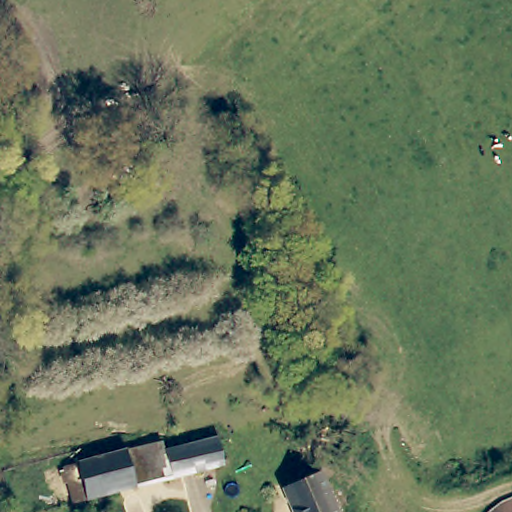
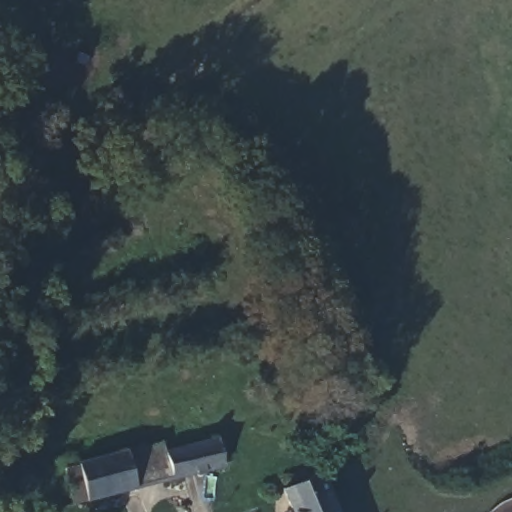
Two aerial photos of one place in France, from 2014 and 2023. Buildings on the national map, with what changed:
unchanged [(69,465),(84,461),(129,450),(134,469),(174,458),(172,450),(224,436),(232,464),(94,499),(79,503),(69,465)]
unchanged [(278,492),(296,485),(318,475),(334,512),(287,512),(278,492)]

